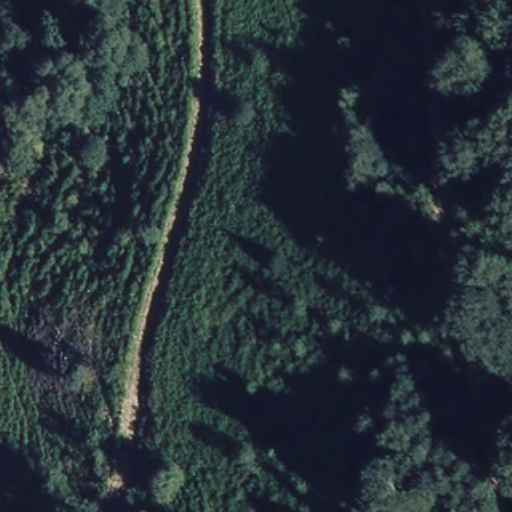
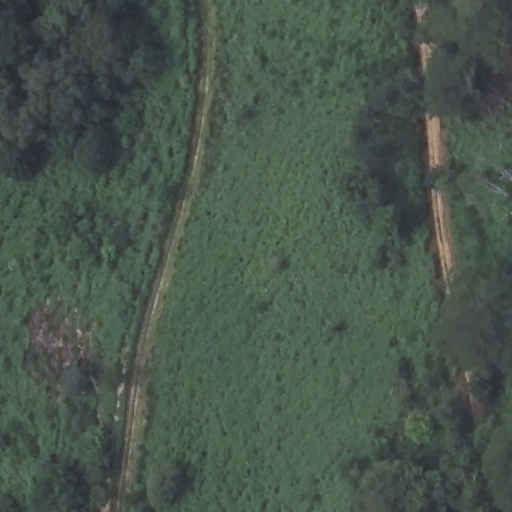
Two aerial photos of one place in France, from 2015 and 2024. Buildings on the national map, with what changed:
unchanged [(29,25),(60,7),(80,54),(42,68),(29,25)]

